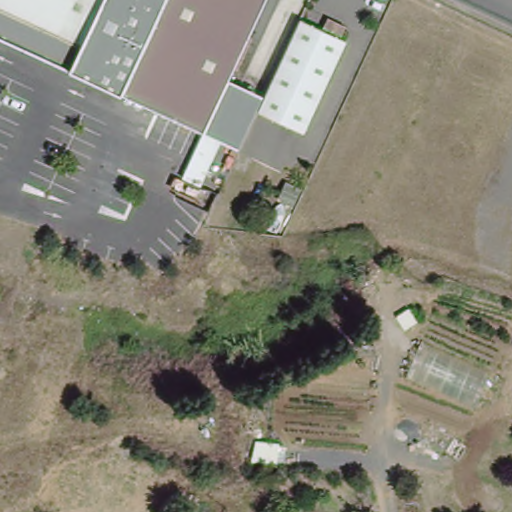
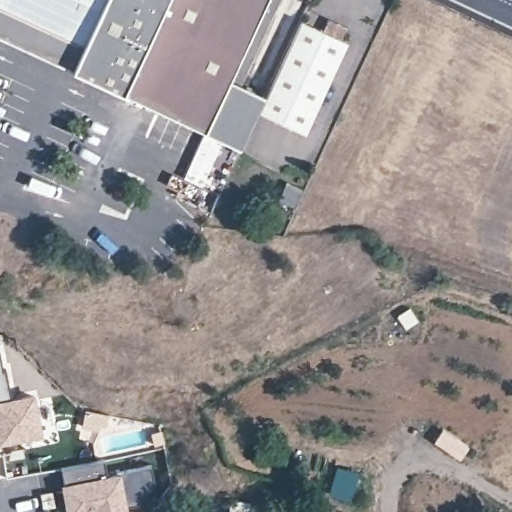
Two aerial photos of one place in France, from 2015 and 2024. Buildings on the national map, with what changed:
unchanged [(0,0),(162,0),(119,91),(0,33),(0,0)]
unchanged [(162,0),(265,0),(229,70),(201,127),(119,91),(162,0)]
unchanged [(346,46),(303,134),(259,112),(269,90),(302,23),(346,46)]
unchanged [(229,70),(269,90),(259,112),(243,145),(201,127),(229,70)]
new [(6,373),(11,403),(33,399),(39,437),(0,444),(0,357),(3,373),(6,373)]
new [(103,462),(107,481),(117,478),(116,475),(151,468),(153,485),(136,507),(123,509),(124,512),(67,512),(59,471),(103,462)]

